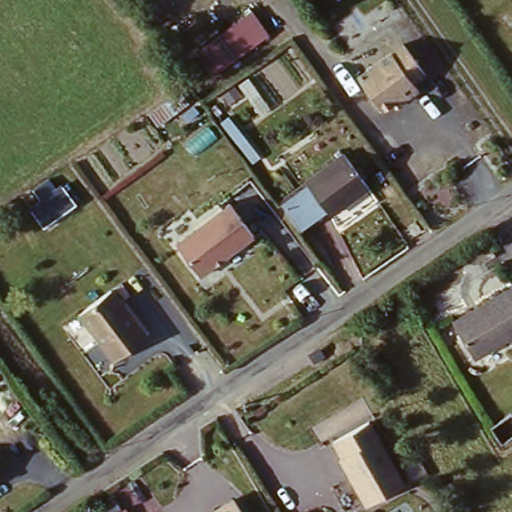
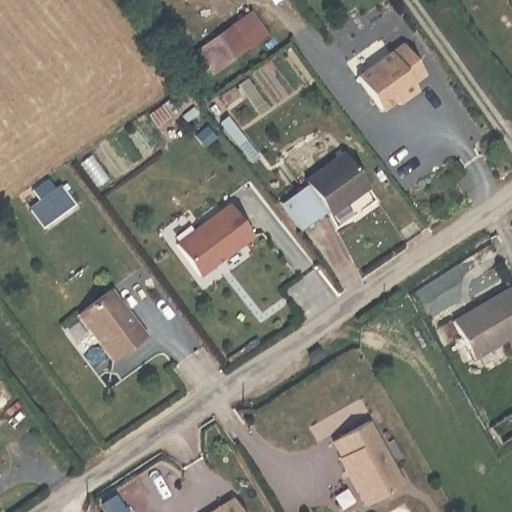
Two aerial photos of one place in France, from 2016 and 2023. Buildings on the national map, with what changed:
unchanged [(267,35),(220,71),(206,48),(252,14),(267,35)]
unchanged [(400,45),(427,77),(416,87),(418,93),(390,115),(361,76),(400,45)]
unchanged [(307,224),(286,192),(347,154),(367,185),(307,224)]
unchanged [(27,208),(61,185),(75,204),(41,228),(27,208)]
unchanged [(198,273),(175,242),(225,205),(248,237),(198,273)]
unchanged [(512,285),(512,329),(473,354),(452,318),(510,280),(512,285)]
unchanged [(141,333),(110,355),(73,307),(105,284),(141,333)]
unchanged [(512,418),(512,441),(505,446),(495,428),(512,418)]
unchanged [(365,423),(401,487),(365,507),(338,460),(340,458),(331,443),(365,423)]
unchanged [(233,512),(205,512),(224,499),(233,512)]

